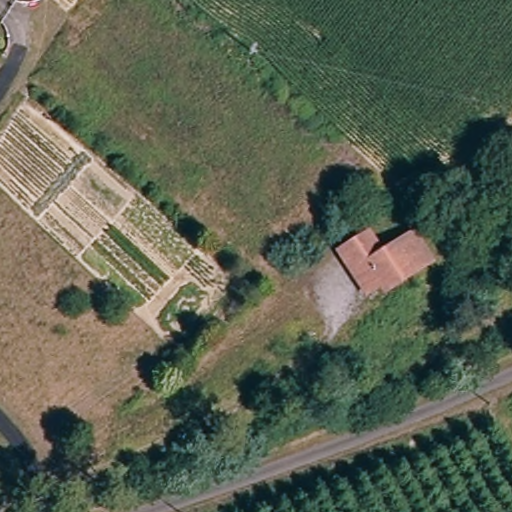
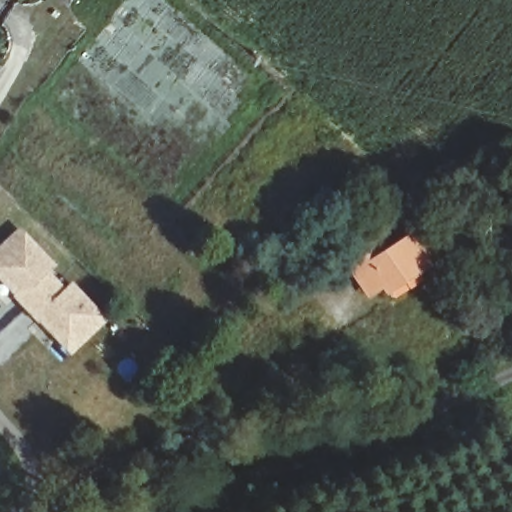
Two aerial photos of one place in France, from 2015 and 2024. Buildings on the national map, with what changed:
new [(0,246),(21,226),(57,264),(50,271),(65,287),(71,281),(108,319),(70,355),(0,280),(0,246)]
unchanged [(395,292),(389,283),(388,281),(364,297),(346,267),(341,258),(338,254),(365,237),(368,242),(373,250),(379,260),(408,242),(421,262),(427,271),(395,292)]

